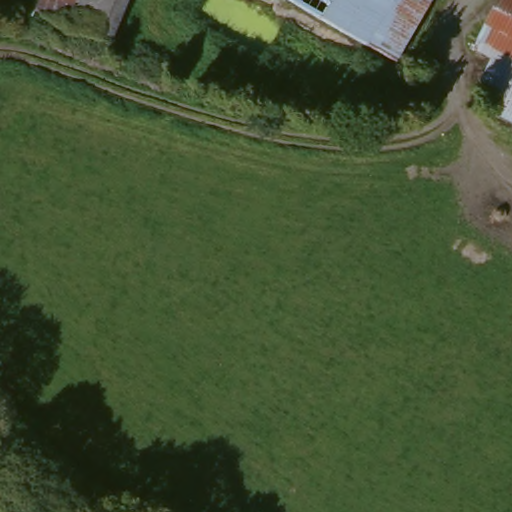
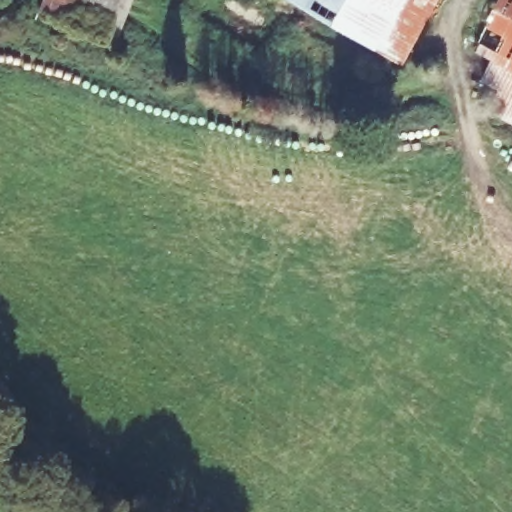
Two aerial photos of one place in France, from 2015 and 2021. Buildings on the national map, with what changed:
unchanged [(111,50),(36,16),(42,0),(132,0),(111,50)]
unchanged [(401,67),(287,0),(438,0),(401,67)]
unchanged [(506,0),(512,0),(512,39),(490,27),(506,0)]
unchanged [(490,27),(512,39),(512,120),(496,110),(504,97),(491,90),(501,67),(476,53),(490,27)]

